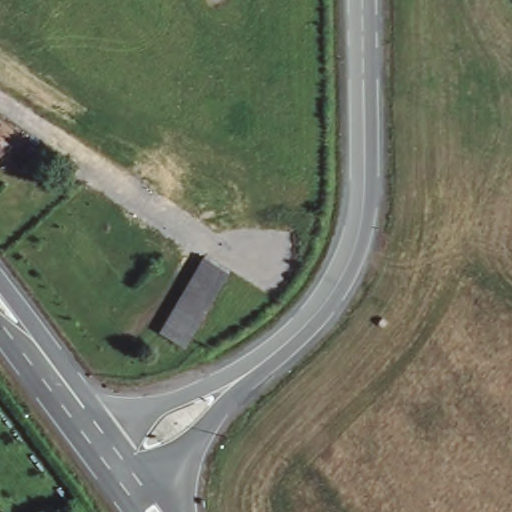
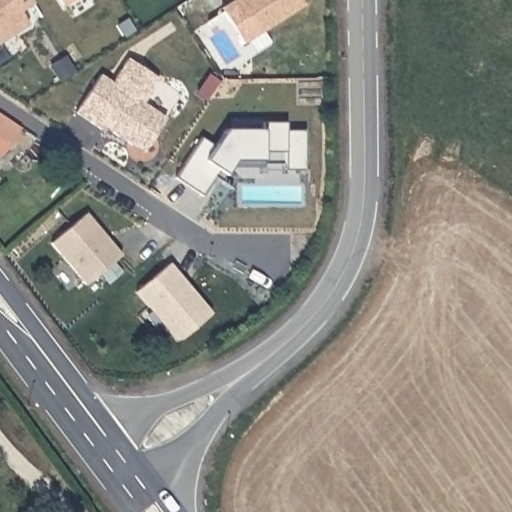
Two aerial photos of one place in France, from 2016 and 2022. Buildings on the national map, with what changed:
new [(30,3),(17,11),(26,24),(0,41),(0,0),(28,0),(30,3)]
new [(61,6),(58,0),(70,0),(61,6)]
new [(299,0),(237,39),(217,8),(215,4),(221,0),(299,0)]
new [(128,141),(107,127),(99,122),(97,125),(70,107),(95,70),(107,77),(122,53),(154,74),(138,98),(161,113),(147,135),(138,148),(128,141)]
new [(206,178),(198,191),(170,173),(193,137),(196,132),(209,141),(220,124),(258,124),(258,117),(282,117),(281,125),(300,125),(300,165),(280,165),(280,147),(259,147),(259,156),(259,162),(226,162),(221,170),(220,169),(212,182),(206,178)]
unchanged [(0,151),(0,137),(10,144),(0,151)]
new [(82,207),(118,248),(84,278),(48,237),(82,207)]
demolished [(227,268),(184,344),(159,329),(201,254),(227,268)]
new [(169,264),(211,313),(177,341),(134,292),(169,264)]

